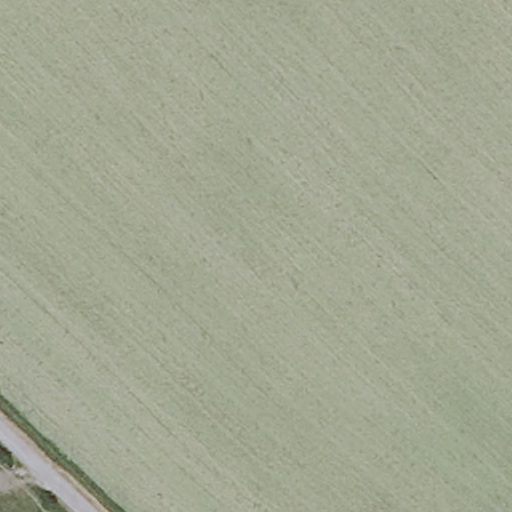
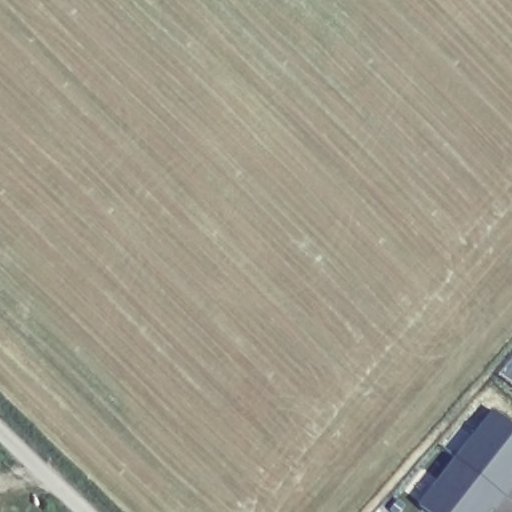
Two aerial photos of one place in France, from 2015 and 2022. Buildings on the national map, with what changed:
new [(454,455),(492,408),(512,424),(512,473),(509,477),(512,479),(512,481),(502,493),(454,455)]
new [(454,455),(502,493),(492,507),(488,504),(481,512),(428,512),(417,503),(454,455)]

